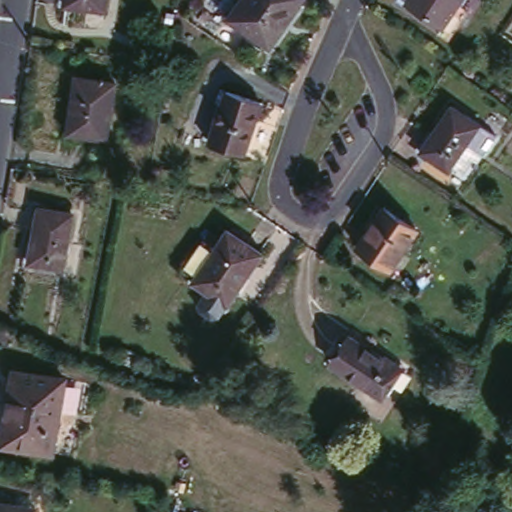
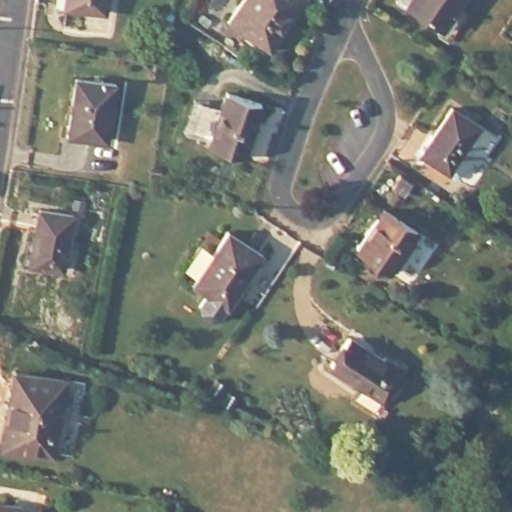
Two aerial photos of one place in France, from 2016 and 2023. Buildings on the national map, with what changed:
unchanged [(64,5),(66,0),(107,0),(104,12),(64,5)]
unchanged [(241,0),(301,0),(269,48),(227,20),(241,0)]
unchanged [(402,0),(404,0),(403,1),(402,0)]
unchanged [(407,0),(456,0),(441,22),(407,0)]
unchanged [(104,135),(64,127),(74,72),(113,80),(104,135)]
unchanged [(209,138),(227,86),(259,96),(241,150),(209,138)]
unchanged [(429,130),(448,102),(461,111),(462,110),(492,130),(482,146),(466,136),(446,167),(423,152),(417,149),(429,130)]
unchanged [(359,244),(386,202),(420,224),(393,265),(359,244)]
unchanged [(60,266),(28,261),(37,207),(71,213),(60,266)]
unchanged [(196,281),(198,279),(193,275),(190,278),(183,273),(205,240),(216,246),(227,228),(261,251),(230,302),(196,281)]
unchanged [(11,329),(11,345),(11,348),(0,348),(0,325),(11,329)]
unchanged [(384,400),(332,365),(350,337),(384,359),(386,358),(403,370),(384,400)]
unchanged [(4,444),(0,442),(0,426),(17,370),(26,373),(64,384),(44,455),(4,444)]
unchanged [(22,506),(37,508),(37,512),(0,512),(0,502),(22,506)]

